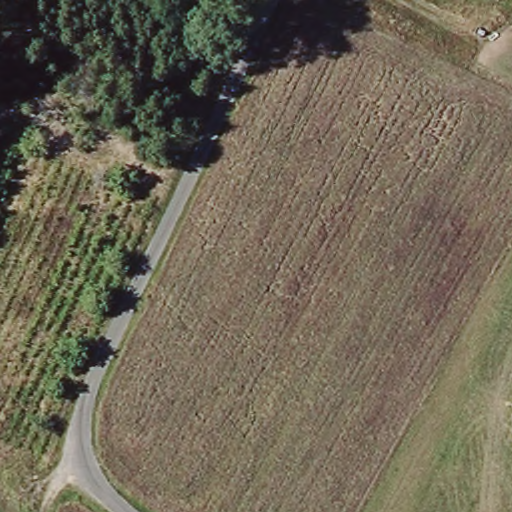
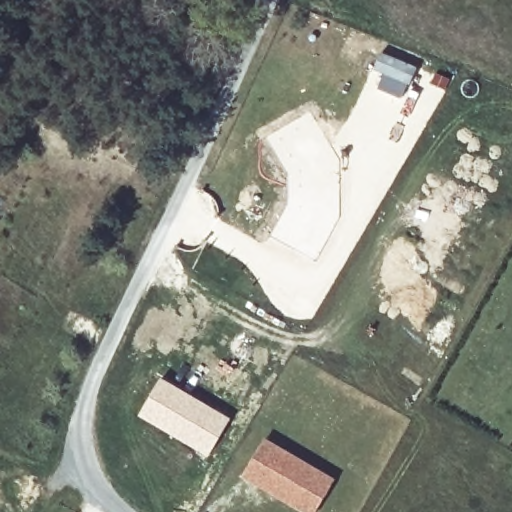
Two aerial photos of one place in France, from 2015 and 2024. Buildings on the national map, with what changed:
new [(210,456),(139,415),(160,380),(230,420),(210,456)]
new [(334,478),(315,512),(300,512),(242,477),(265,438),(334,478)]

